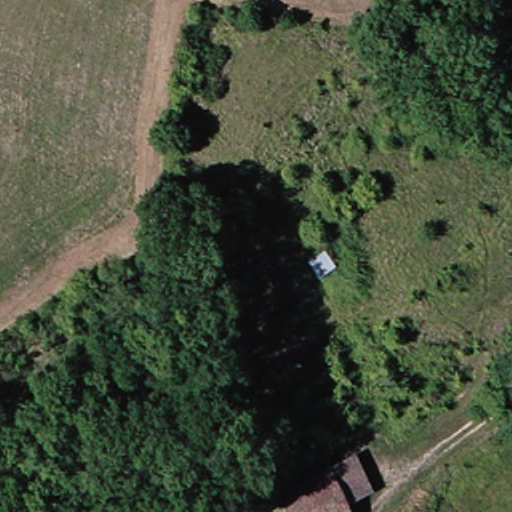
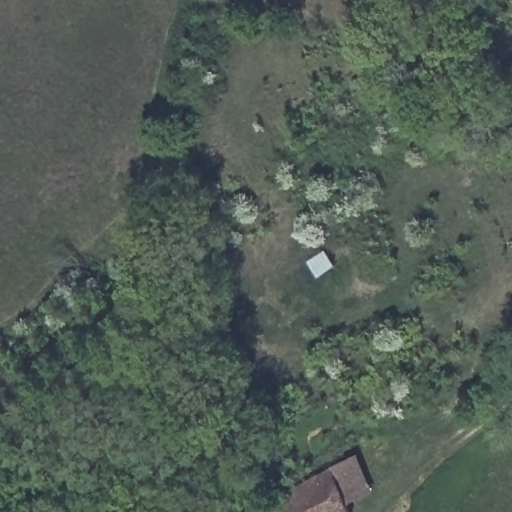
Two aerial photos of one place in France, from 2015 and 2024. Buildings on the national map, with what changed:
unchanged [(274,497),(326,469),(347,512),(278,512),(274,497)]

